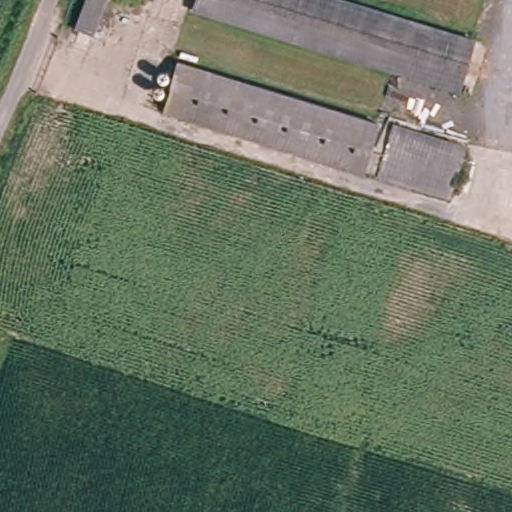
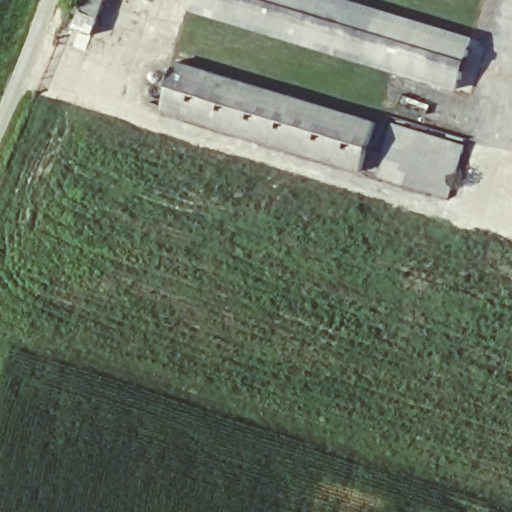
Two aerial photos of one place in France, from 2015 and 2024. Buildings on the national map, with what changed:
unchanged [(67,28),(69,20),(77,0),(95,0),(85,25),(82,33),(67,28)]
unchanged [(468,37),(450,89),(188,3),(189,0),(351,0),(468,37)]
unchanged [(372,124),(356,175),(156,111),(172,61),(372,124)]
unchanged [(454,154),(437,200),(365,178),(382,130),(454,154)]

